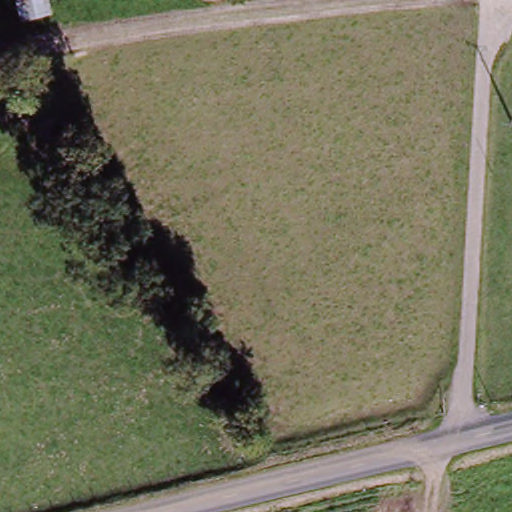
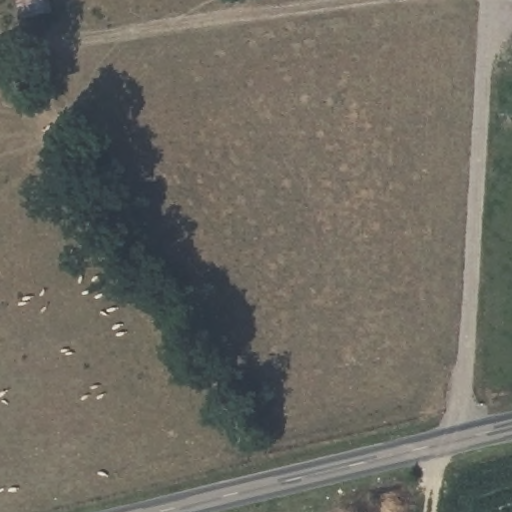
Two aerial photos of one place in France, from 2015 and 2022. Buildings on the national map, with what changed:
unchanged [(25,33),(17,0),(46,0),(52,28),(25,33)]

